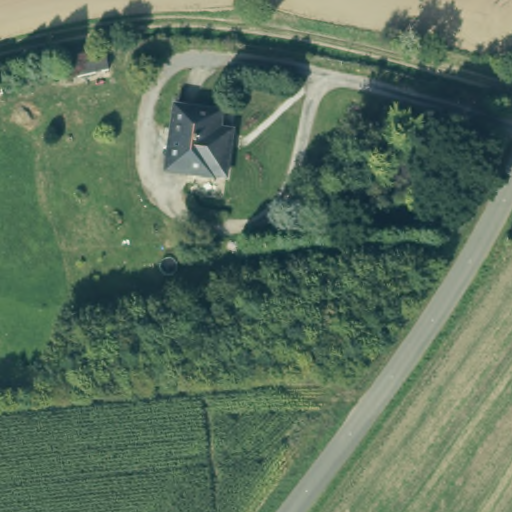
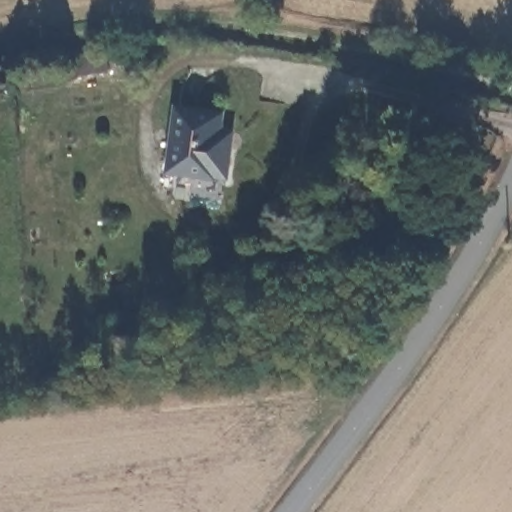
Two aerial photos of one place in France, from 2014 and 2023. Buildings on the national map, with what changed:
unchanged [(102,55),(106,74),(65,84),(60,65),(102,55)]
unchanged [(221,134),(232,135),(225,179),(167,169),(179,106),(225,115),(221,134)]

